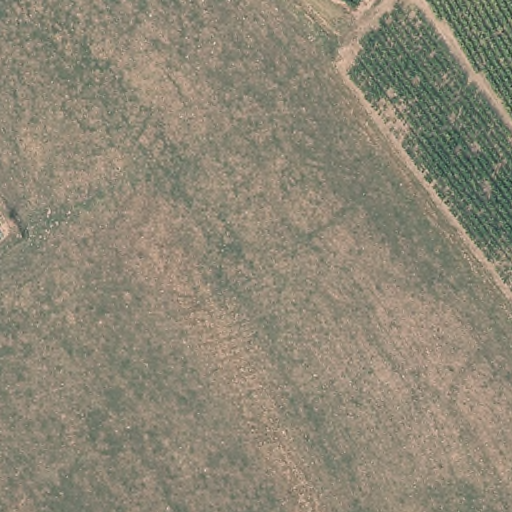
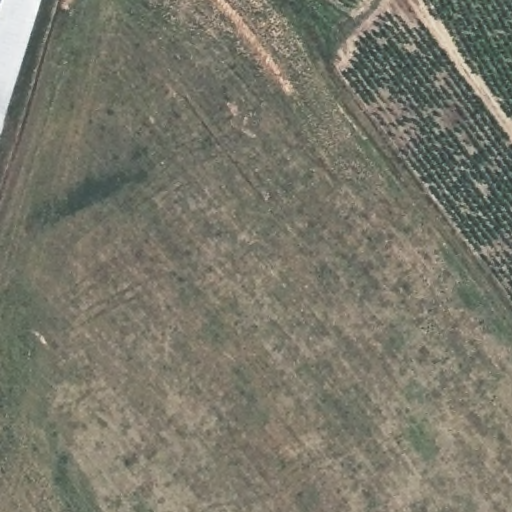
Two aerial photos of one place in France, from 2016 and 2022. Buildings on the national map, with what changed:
new [(0,128),(0,0),(39,0),(0,128)]

